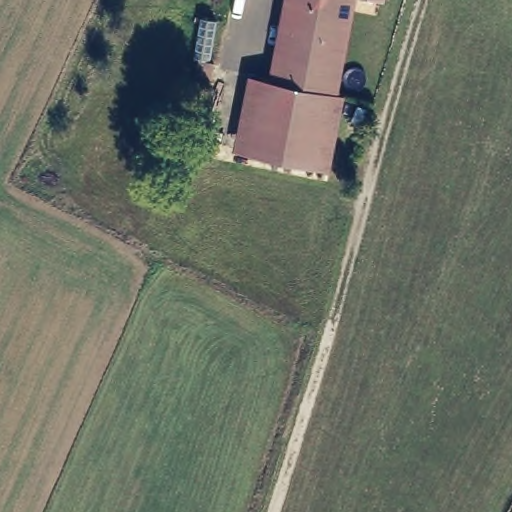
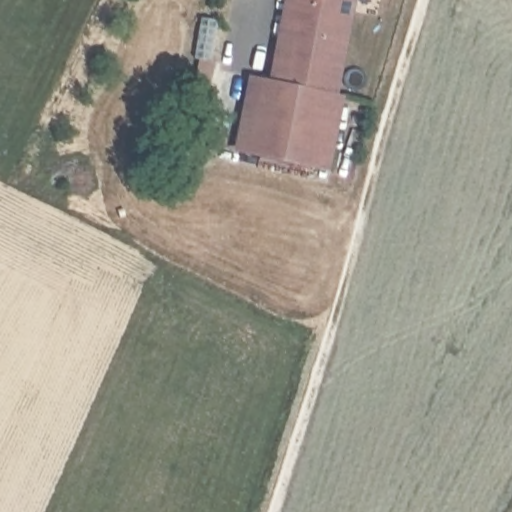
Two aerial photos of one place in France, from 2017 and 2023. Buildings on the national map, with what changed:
unchanged [(271,79),(286,0),(350,0),(333,94),(271,79)]
unchanged [(333,94),(320,164),(246,149),(259,77),(271,79),(333,94)]

